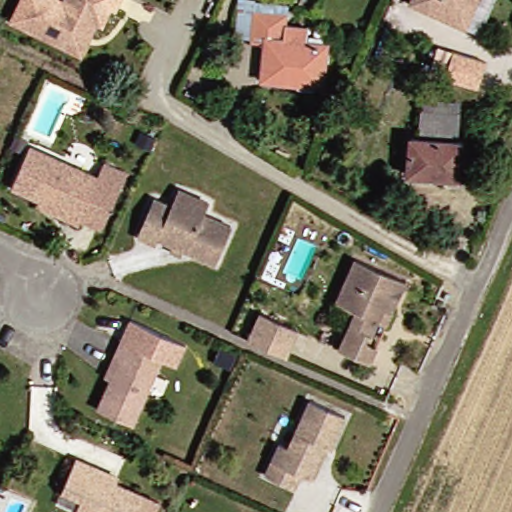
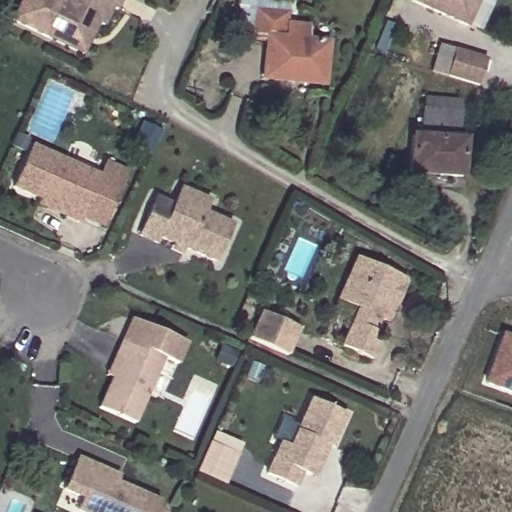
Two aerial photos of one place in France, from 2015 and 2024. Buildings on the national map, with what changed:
unchanged [(11,21),(21,0),(64,0),(122,0),(116,11),(111,9),(103,27),(98,24),(92,35),(81,56),(48,40),(11,21)]
unchanged [(411,4),(413,0),(479,0),(477,6),(467,29),(411,4)]
unchanged [(293,12),(292,25),(313,27),(311,40),(334,42),(329,86),(267,80),(270,40),(255,39),(260,10),(293,12)]
unchanged [(449,77),(434,72),(442,46),(490,60),(482,87),(449,77)]
unchanged [(431,127),(433,109),(435,97),(466,100),(465,112),(470,112),(468,131),(431,127)]
unchanged [(474,140),(471,177),(418,172),(422,137),(474,140)]
unchanged [(87,219),(85,224),(67,216),(44,206),(46,200),(19,187),(36,147),(105,177),(111,165),(132,174),(118,205),(108,229),(87,219)]
unchanged [(222,262),(166,237),(163,244),(145,236),(161,197),(179,205),(181,200),(186,189),(216,202),(211,213),(239,225),(222,262)]
unchanged [(384,315),(374,337),(383,341),(376,357),(345,343),(362,306),(342,297),(362,254),(413,276),(398,307),(393,319),(384,315)]
unchanged [(249,339),(261,312),(299,329),(287,356),(249,339)]
unchanged [(187,345),(177,366),(164,360),(134,425),(99,409),(111,380),(106,377),(115,357),(131,320),(187,345)]
new [(502,332),(512,335),(512,394),(484,383),(502,332)]
unchanged [(314,477),(307,474),(301,488),(271,475),(285,443),(294,447),(316,400),(352,416),(337,449),(333,447),(319,479),(314,477)]
new [(206,443),(235,456),(222,485),(193,472),(206,443)]
unchanged [(160,512),(87,512),(83,510),(88,498),(69,489),(83,459),(103,468),(124,477),(121,483),(165,502),(160,512)]

